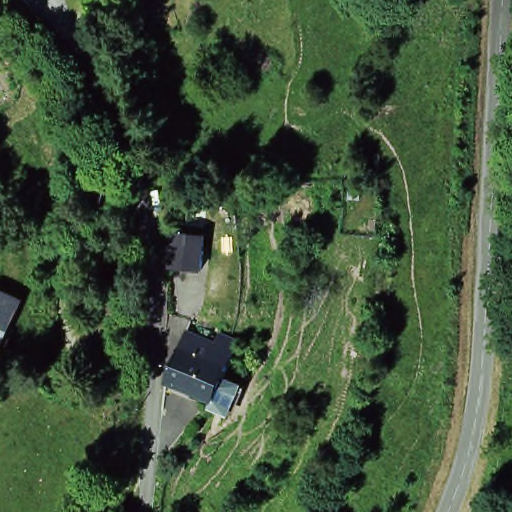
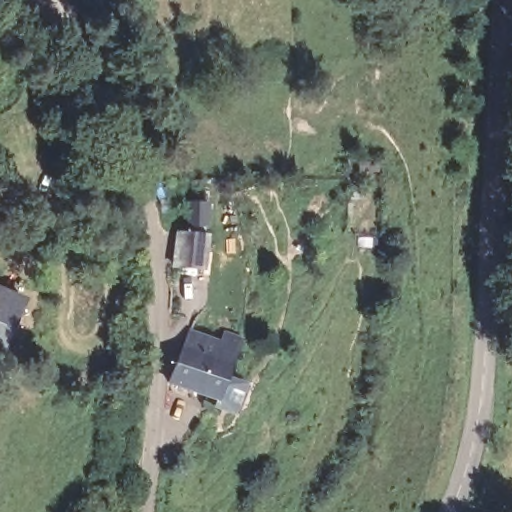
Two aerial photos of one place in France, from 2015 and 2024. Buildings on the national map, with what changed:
unchanged [(201,272),(170,268),(175,231),(205,234),(201,272)]
unchanged [(8,356),(0,352),(0,290),(27,302),(8,344),(13,346),(8,356)]
unchanged [(173,377),(187,343),(193,329),(226,342),(231,331),(246,337),(235,363),(221,397),(173,377)]

